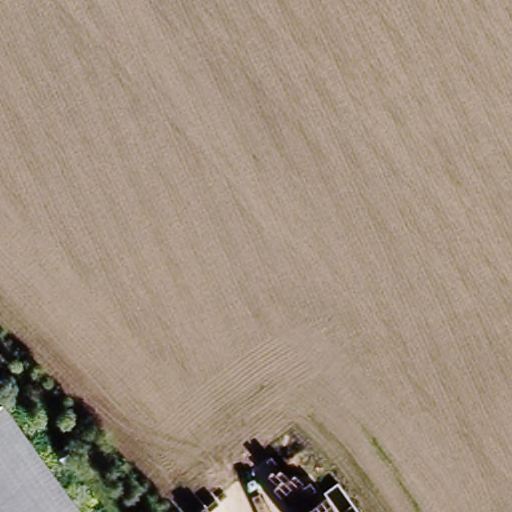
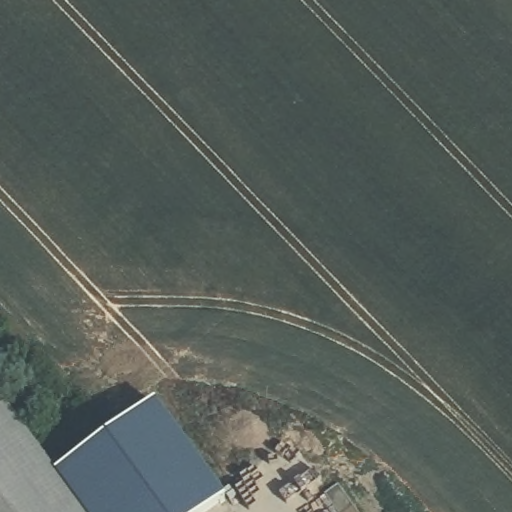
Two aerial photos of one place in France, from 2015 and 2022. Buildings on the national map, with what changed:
new [(213,512),(83,512),(56,475),(156,403),(226,502),(213,512)]
unchanged [(84,512),(0,512),(0,408),(5,404),(84,512)]

